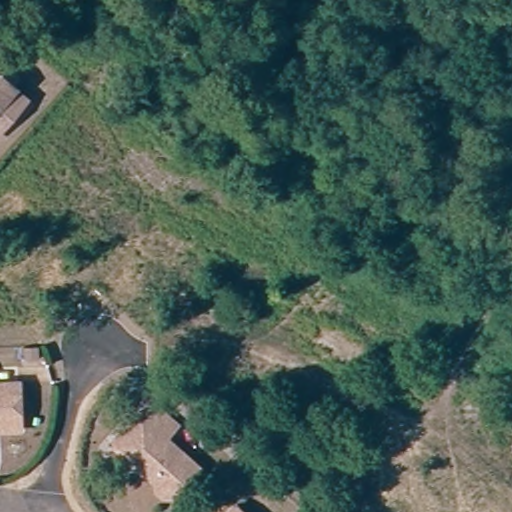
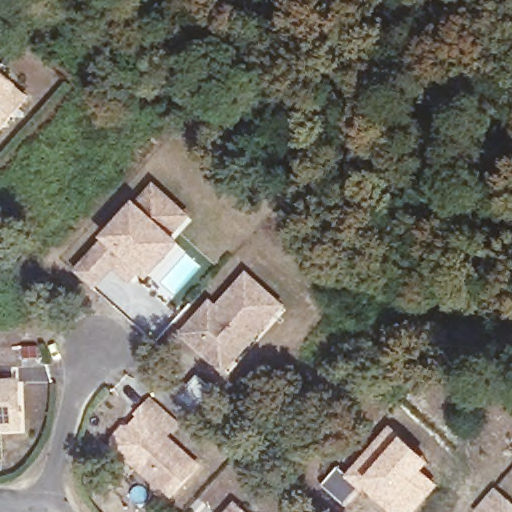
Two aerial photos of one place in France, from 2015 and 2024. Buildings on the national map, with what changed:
unchanged [(15,86),(13,89),(25,100),(0,129),(0,73),(15,86)]
new [(139,275),(129,286),(115,272),(96,291),(74,271),(101,239),(136,202),(153,184),(191,218),(175,238),(183,246),(149,284),(139,275)]
new [(285,306),(224,375),(177,337),(210,298),(217,305),(247,271),(285,306)]
unchanged [(15,382),(17,428),(0,429),(0,382),(15,382)]
unchanged [(141,421),(137,416),(150,402),(178,428),(169,440),(200,468),(176,497),(167,497),(159,492),(157,482),(118,446),(141,421)]
new [(390,425),(433,463),(426,472),(439,485),(416,512),(389,512),(360,488),(344,506),(321,485),(337,467),(345,475),(390,425)]
new [(504,497),(512,504),(512,512),(475,512),(494,490),(504,497)]
unchanged [(254,512),(226,512),(238,498),(254,512)]
unchanged [(187,512),(180,512),(183,508),(187,512)]

